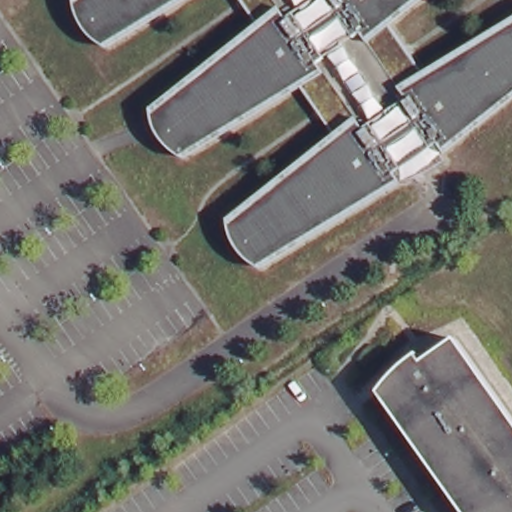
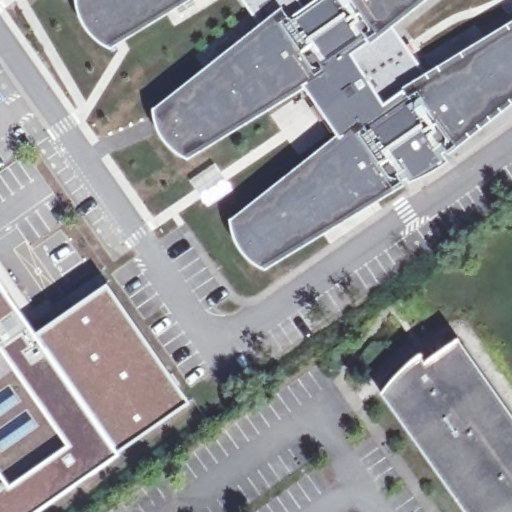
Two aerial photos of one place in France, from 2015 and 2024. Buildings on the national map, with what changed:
unchanged [(96,46),(87,37),(85,32),(78,21),(75,7),(84,0),(191,0),(109,53),(96,46)]
unchanged [(431,76),(512,24),(512,102),(445,155),(451,163),(447,166),(439,172),(435,174),(430,177),(430,178),(430,180),(430,181),(429,182),(428,183),(426,184),(425,184),(423,183),(422,183),(421,181),(415,184),(411,185),(409,181),(267,273),(255,265),(243,252),(238,241),(235,226),(341,142),(302,89),(188,163),(176,155),(164,142),(158,131),(155,116),(261,32),(238,0),(423,0),(393,23),(431,76)]
new [(37,512),(0,512),(0,276),(35,329),(120,452),(37,512)]
new [(108,280),(190,400),(120,452),(35,329),(108,280)]
unchanged [(383,381),(387,377),(390,374),(393,371),(397,368),(400,366),(406,362),(412,360),(417,359),(423,358),(427,357),(432,365),(464,342),(512,412),(512,512),(461,512),(377,393),(380,387),(381,384),(383,381)]

